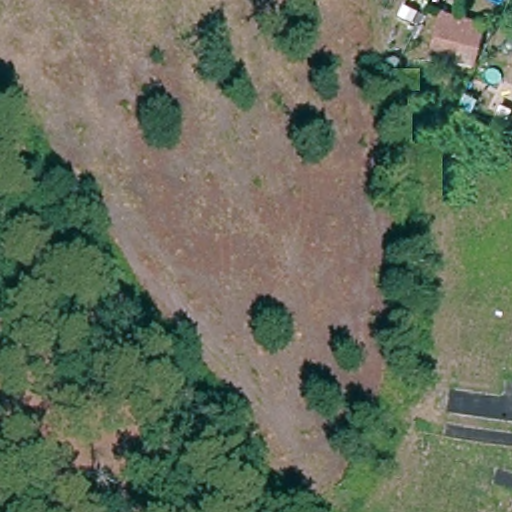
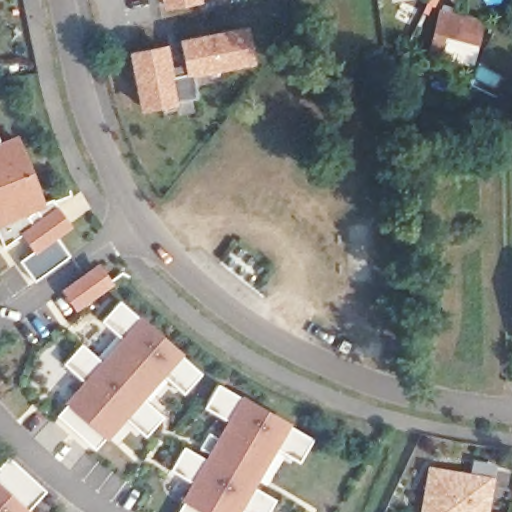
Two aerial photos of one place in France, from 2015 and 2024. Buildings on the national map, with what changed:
new [(163,0),(200,0),(165,7),(163,0)]
unchanged [(433,7),(482,17),(473,55),(429,44),(433,7)]
new [(195,85),(197,97),(142,109),(127,52),(168,42),(172,66),(184,63),(179,37),(247,24),(255,62),(210,71),(212,81),(195,85)]
new [(43,218),(37,209),(29,214),(35,225),(4,245),(0,234),(0,140),(0,142),(19,134),(46,202),(54,199),(59,207),(43,218)]
new [(100,262),(115,283),(77,311),(61,289),(100,262)]
new [(184,392),(164,376),(145,397),(165,415),(146,434),(127,417),(108,439),(105,437),(96,447),(57,413),(68,402),(66,401),(85,380),(65,362),(82,343),(101,361),(122,336),(102,320),(120,300),(202,372),(184,392)]
new [(300,461),(277,447),(255,486),(275,498),(267,512),(245,512),(241,510),(240,512),(179,512),(186,500),(182,497),(192,480),(171,467),(184,446),(205,457),(227,419),(205,405),(219,382),(313,437),(300,461)]
new [(9,456),(45,490),(29,509),(31,512),(0,512),(0,466),(9,456)]
new [(428,465),(495,476),(489,512),(420,512),(428,465)]

